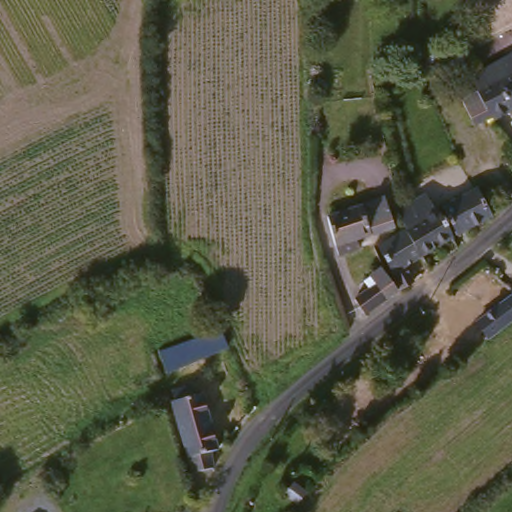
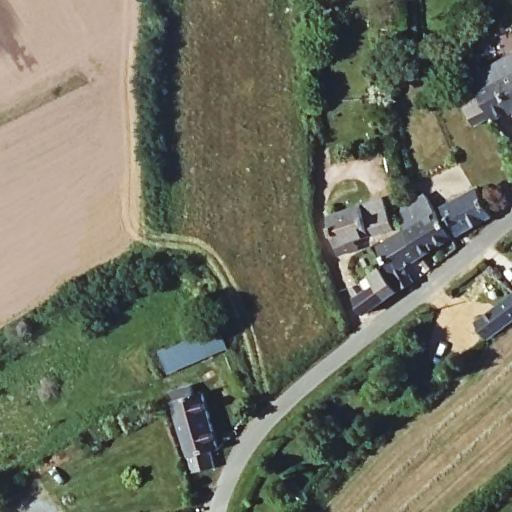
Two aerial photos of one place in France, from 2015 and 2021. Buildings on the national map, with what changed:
unchanged [(441,67),(438,53),(463,47),(467,62),(441,67)]
unchanged [(512,59),(512,117),(497,125),(473,80),(512,59)]
unchanged [(462,239),(449,209),(483,191),(499,218),(462,239)]
unchanged [(427,260),(411,235),(404,214),(431,199),(441,213),(459,242),(427,260)]
unchanged [(344,249),(334,221),(391,202),(400,230),(344,249)]
unchanged [(411,270),(418,287),(411,290),(406,293),(382,252),(411,235),(427,260),(411,270)]
unchanged [(370,318),(362,304),(375,294),(372,285),(375,279),(386,272),(401,295),(370,318)]
unchanged [(172,375),(164,349),(222,329),(228,345),(209,352),(211,360),(172,375)]
unchanged [(216,456),(220,469),(199,476),(178,406),(207,398),(224,453),(216,456)]

